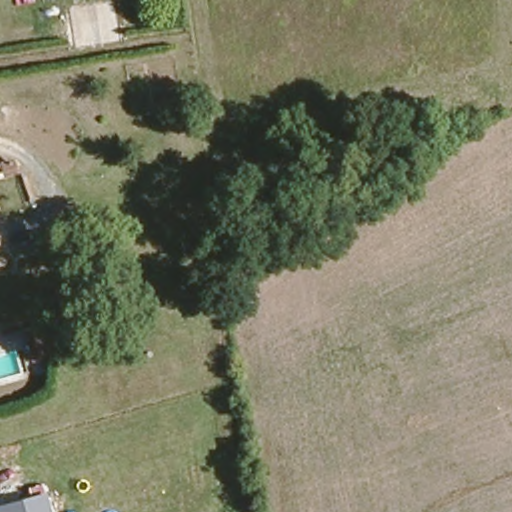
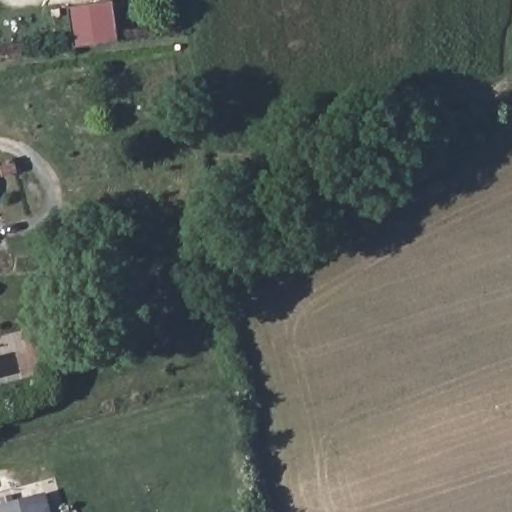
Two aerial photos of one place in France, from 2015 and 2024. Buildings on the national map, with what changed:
new [(120,41),(75,49),(69,9),(114,1),(120,41)]
unchanged [(10,160),(15,163),(17,167),(3,172),(1,164),(10,160)]
unchanged [(45,322),(51,321),(57,341),(60,340),(61,340),(67,338),(68,343),(62,346),(59,347),(61,353),(55,355),(49,357),(39,325),(45,322)]
unchanged [(47,493),(52,512),(0,512),(0,506),(47,493)]

